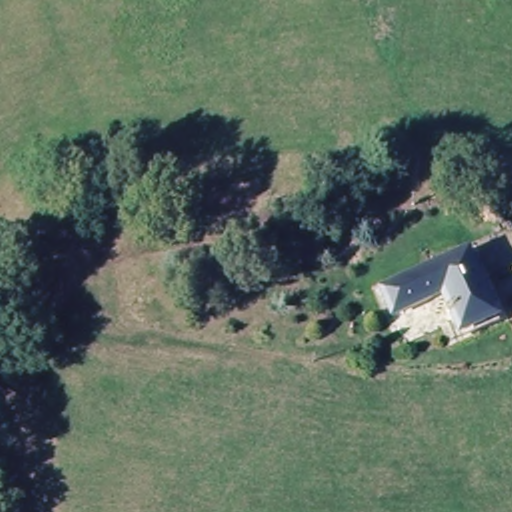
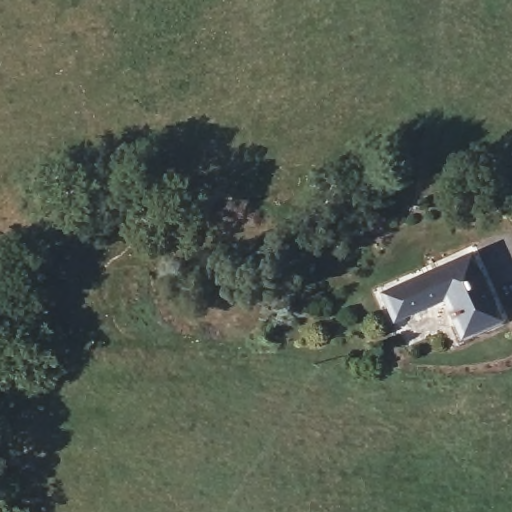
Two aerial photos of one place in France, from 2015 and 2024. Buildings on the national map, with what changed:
unchanged [(466,253),(498,321),(463,336),(443,305),(428,270),(466,253)]
unchanged [(443,305),(395,327),(377,294),(428,270),(443,305)]
unchanged [(502,317),(512,313),(512,337),(511,336),(502,317)]

